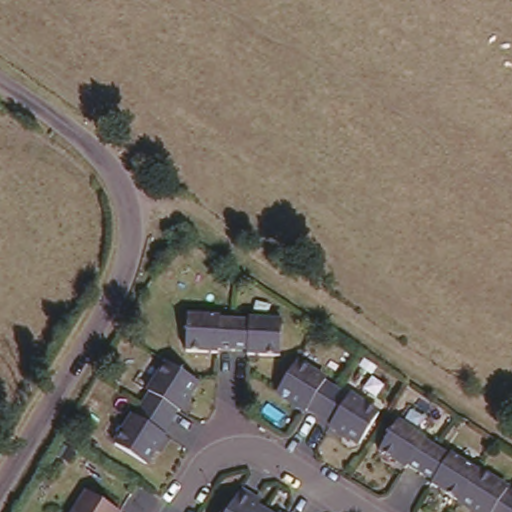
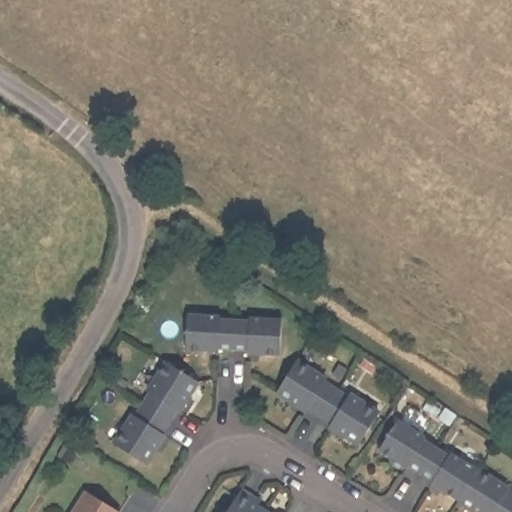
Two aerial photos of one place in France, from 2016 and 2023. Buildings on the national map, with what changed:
unchanged [(212,308),(212,311),(246,312),(246,309),(276,310),(274,350),(245,347),(244,344),(214,342),(214,346),(182,343),(182,306),(212,308)]
unchanged [(321,373),(319,376),(346,393),(347,390),(373,407),(355,437),(325,420),(327,416),(302,400),(300,402),(271,384),(291,354),(321,373)]
unchanged [(128,413),(131,415),(147,386),(145,386),(160,362),(192,380),(174,407),(171,405),(156,429),(157,431),(140,460),(111,442),(128,413)]
unchanged [(512,483),(512,512),(484,512),(483,511),(483,512),(479,512),(425,478),(427,475),(403,460),(401,463),(375,446),(394,415),(420,430),(419,432),(446,450),(447,448),(504,484),(506,480),(512,483)]
unchanged [(245,497),(268,512),(211,512),(217,505),(223,507),(236,483),(249,490),(245,497)]
unchanged [(109,512),(63,512),(81,485),(114,505),(109,512)]
unchanged [(279,512),(278,512),(278,511),(279,512)]

